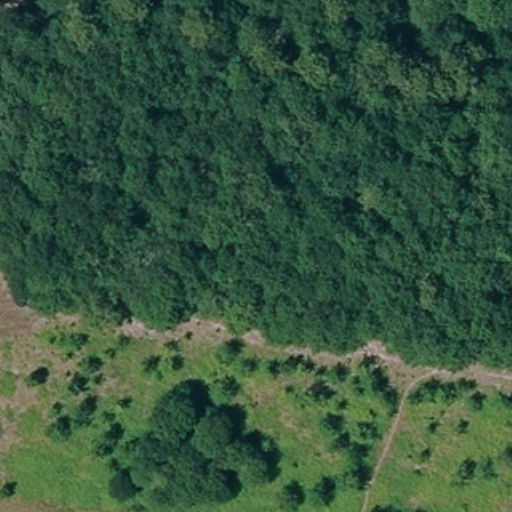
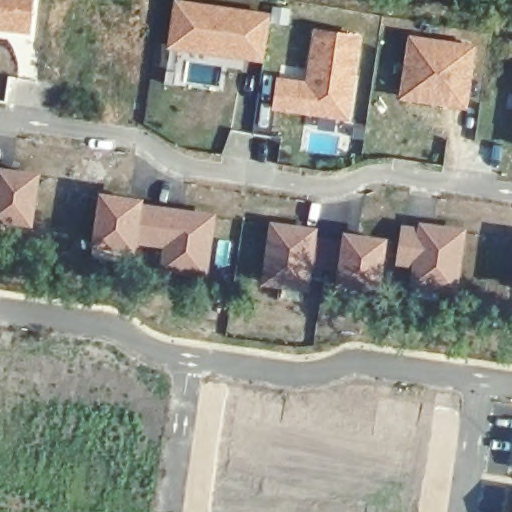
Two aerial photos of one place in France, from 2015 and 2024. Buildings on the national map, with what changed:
new [(35,0),(30,35),(0,31),(0,0),(35,0)]
new [(196,0),(271,11),(272,5),(290,7),(288,25),(269,22),(263,63),(224,59),(165,49),(172,0),(196,0)]
new [(276,74),(303,79),(312,26),(362,34),(349,121),(270,109),(276,74)]
new [(407,33),(477,43),(467,110),(397,100),(407,33)]
new [(41,171),(32,229),(0,225),(0,166),(41,171)]
new [(98,190),(144,197),(143,202),(138,245),(137,255),(90,247),(98,190)]
new [(143,202),(217,211),(207,275),(158,268),(161,249),(138,245),(143,202)]
new [(269,220),(317,227),(309,293),(259,285),(269,220)]
new [(400,223),(416,225),(417,220),(466,227),(457,293),(406,288),(409,268),(394,266),(400,223)]
new [(342,230),(388,237),(381,290),(335,286),(342,230)]

